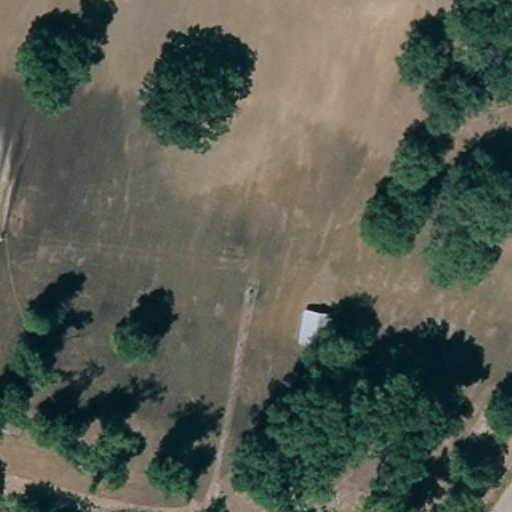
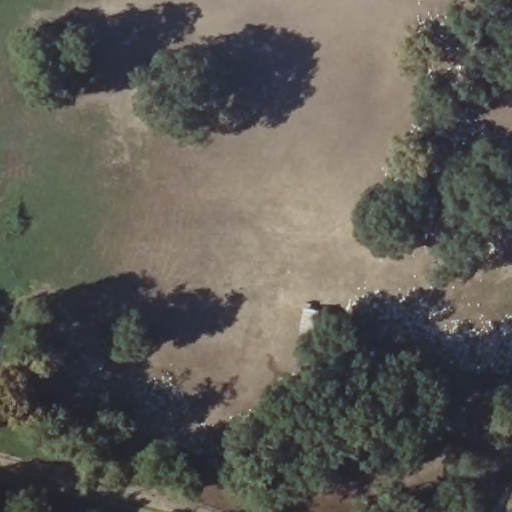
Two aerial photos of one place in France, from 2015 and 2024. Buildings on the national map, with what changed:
unchanged [(331,313),(327,345),(299,343),(303,309),(331,313)]

